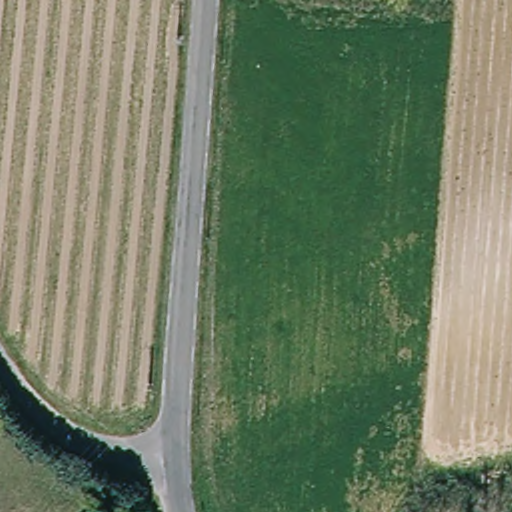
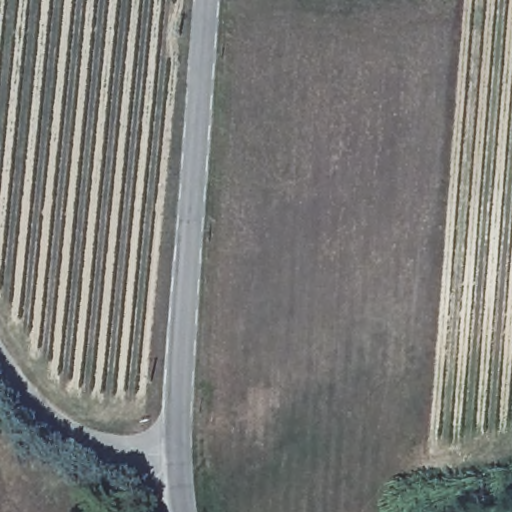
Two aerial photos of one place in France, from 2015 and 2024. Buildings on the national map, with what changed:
[]

